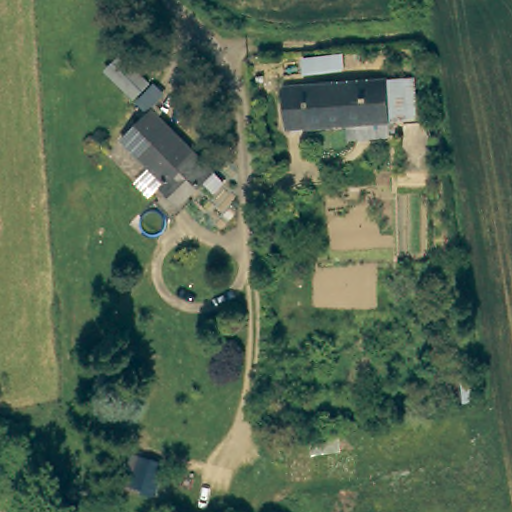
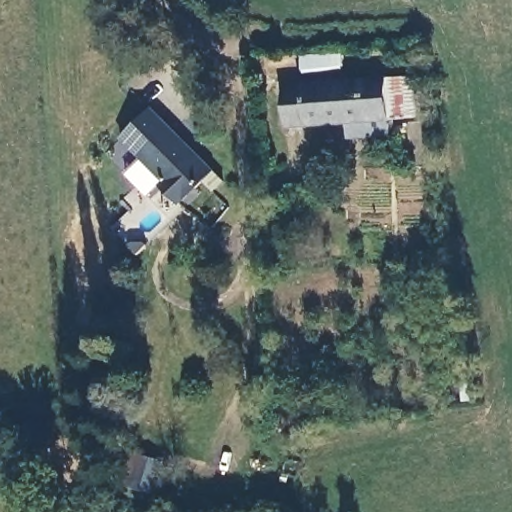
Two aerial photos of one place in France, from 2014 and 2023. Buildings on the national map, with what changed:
unchanged [(352,139),(351,120),(289,123),(287,81),(416,75),(418,116),(391,119),(392,138),(352,139)]
unchanged [(163,183),(169,176),(151,160),(149,163),(122,136),(152,104),(216,164),(201,182),(205,185),(187,205),(163,183)]
unchanged [(171,476),(167,491),(143,484),(146,469),(171,476)]

